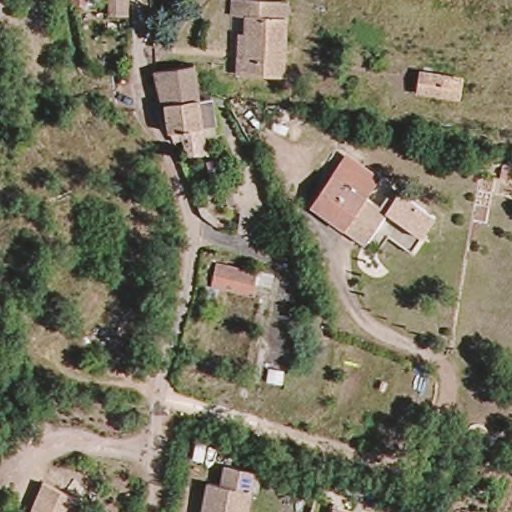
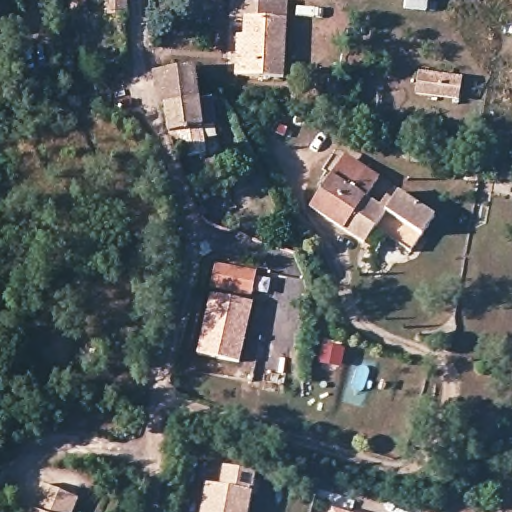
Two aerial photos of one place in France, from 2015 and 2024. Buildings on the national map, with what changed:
unchanged [(97,2),(70,0),(96,0),(97,2)]
unchanged [(107,7),(106,0),(123,0),(123,8),(107,7)]
unchanged [(241,40),(241,20),(226,20),(226,1),(286,1),(286,81),(241,81),(233,81),(231,40),(241,40)]
unchanged [(165,96),(161,95),(155,61),(195,58),(198,78),(199,86),(204,87),(205,95),(213,95),(216,121),(204,123),(208,149),(191,152),(181,130),(173,132),(171,121),(165,96)]
unchanged [(466,77),(464,99),(416,96),(418,75),(466,77)]
unchanged [(362,178),(354,187),(368,200),(343,235),(307,207),(340,160),(362,178)]
unchanged [(368,200),(383,210),(399,190),(434,215),(409,250),(388,239),(376,252),(343,235),(368,200)]
unchanged [(256,274),(248,292),(213,277),(221,260),(256,274)]
new [(239,363),(196,353),(211,292),(254,303),(239,363)]
new [(320,340),(345,346),(340,367),(316,363),(320,340)]
unchanged [(219,485),(225,461),(253,468),(251,476),(259,478),(257,491),(249,490),(244,512),(198,512),(205,482),(219,485)]
unchanged [(70,512),(28,512),(40,480),(78,492),(70,512)]

